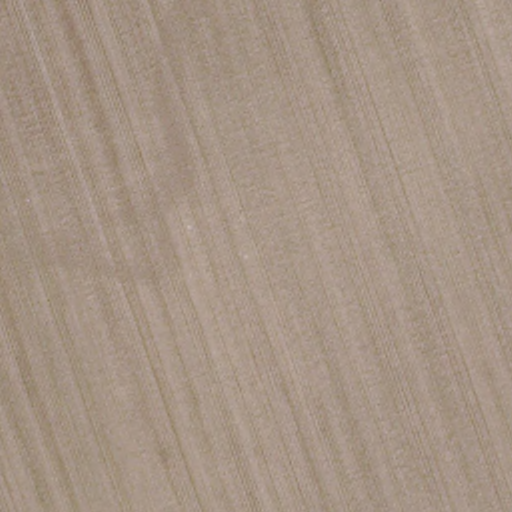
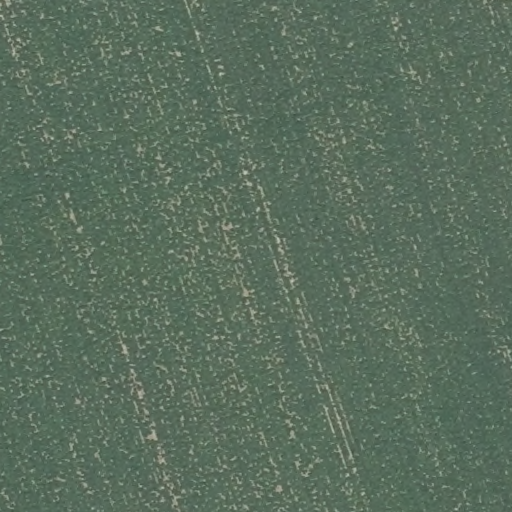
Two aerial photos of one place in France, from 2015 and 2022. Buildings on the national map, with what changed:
[]

